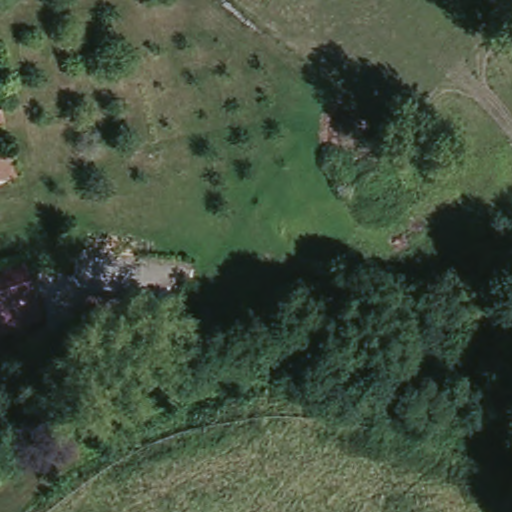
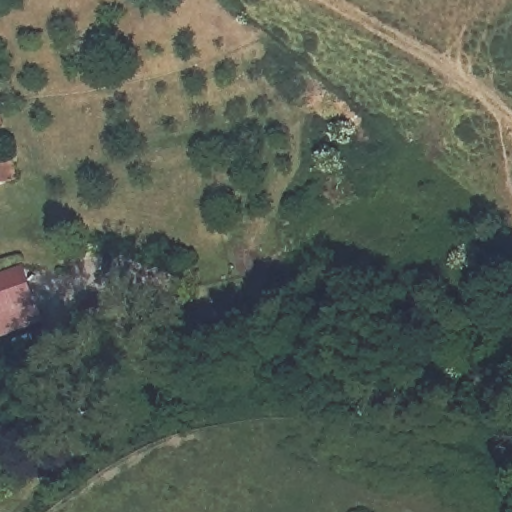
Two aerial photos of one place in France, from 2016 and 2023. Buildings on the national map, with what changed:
unchanged [(10,179),(0,181),(0,152),(8,151),(10,179)]
unchanged [(40,314),(0,327),(0,273),(27,262),(40,314)]
unchanged [(86,304),(162,311),(159,337),(83,327),(86,304)]

